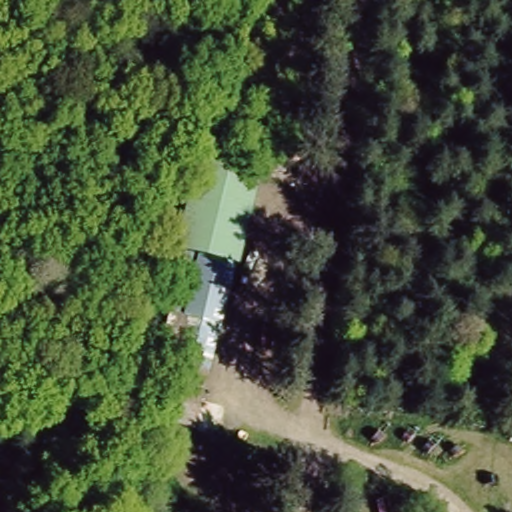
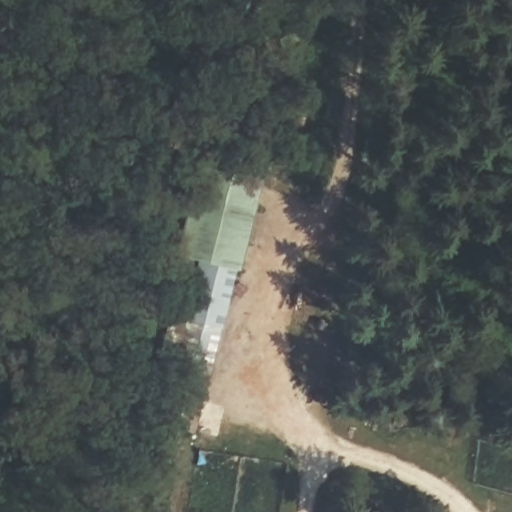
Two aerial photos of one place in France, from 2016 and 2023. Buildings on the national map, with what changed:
unchanged [(259,177),(240,266),(233,263),(196,424),(157,413),(167,363),(154,359),(194,158),(259,177)]

